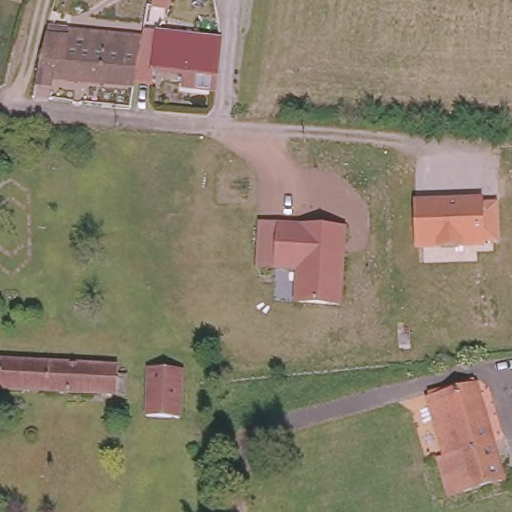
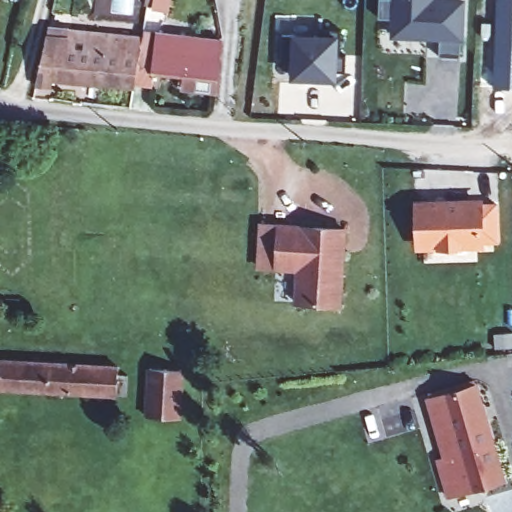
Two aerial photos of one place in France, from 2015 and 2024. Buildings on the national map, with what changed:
unchanged [(168,15),(149,11),(152,0),(171,0),(168,15)]
new [(426,38),(393,36),(394,20),(379,19),(379,0),(432,0),(432,1),(463,2),(460,59),(439,58),(440,32),(439,38),(426,38)]
new [(497,0),(512,0),(512,86),(494,87),(497,0)]
unchanged [(136,80),(135,83),(134,84),(53,76),(51,83),(36,81),(43,49),(48,26),(144,36),(136,80)]
unchanged [(183,86),(184,72),(156,69),(154,83),(136,80),(144,36),(144,32),(145,30),(223,39),(218,76),(216,89),(183,86)]
new [(294,61),(281,60),(282,36),(318,37),(319,30),(341,31),(339,56),(346,57),(344,73),(335,72),(334,80),(293,78),(294,61)]
unchanged [(482,246),(422,248),(421,208),(481,206),(482,246)]
unchanged [(299,306),(300,273),(261,270),(263,228),(346,233),(343,309),(299,306)]
unchanged [(89,362),(119,364),(119,373),(128,373),(128,393),(0,386),(0,356),(89,362)]
unchanged [(184,373),(182,421),(150,419),(152,372),(184,373)]
unchanged [(446,461),(428,403),(442,400),(477,390),(506,485),(452,500),(441,462),(446,461)]
demolished [(251,396),(252,405),(238,406),(238,397),(251,396)]

